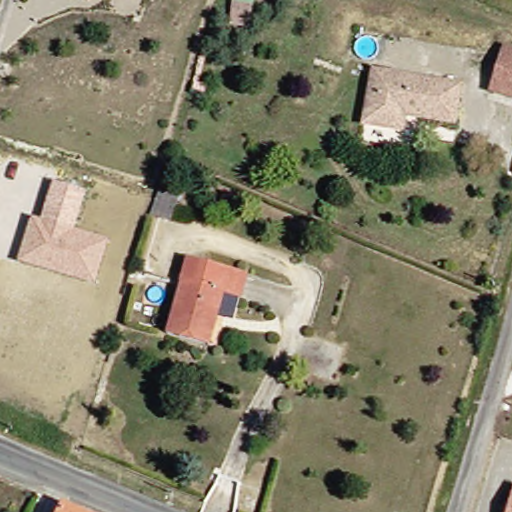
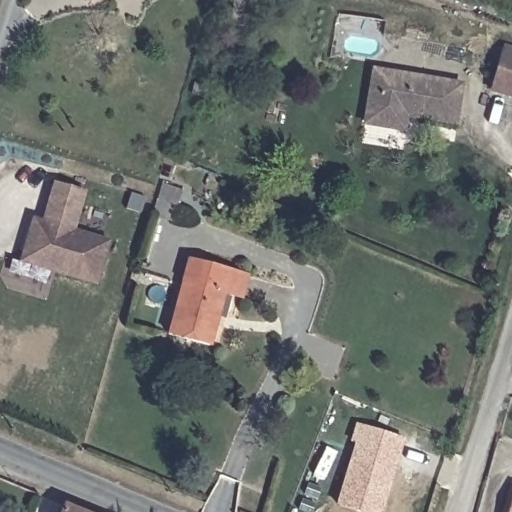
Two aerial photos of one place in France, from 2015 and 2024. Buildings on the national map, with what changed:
unchanged [(90,1),(90,0),(91,0),(90,1)]
unchanged [(500,50),(512,53),(512,103),(487,96),(500,50)]
unchanged [(452,86),(445,123),(395,114),(392,129),(355,122),(365,69),(452,86)]
unchanged [(87,192),(75,232),(108,242),(96,288),(17,264),(32,219),(40,220),(53,182),(87,192)]
unchanged [(236,273),(230,297),(220,294),(215,293),(205,337),(164,328),(174,281),(179,260),(192,263),(226,271),(236,273)]
new [(355,512),(335,506),(353,444),(348,443),(355,423),(404,438),(382,512),(355,512)]
unchanged [(512,487),(512,512),(502,512),(508,487),(512,487)]
unchanged [(60,512),(63,506),(79,512),(60,512)]

